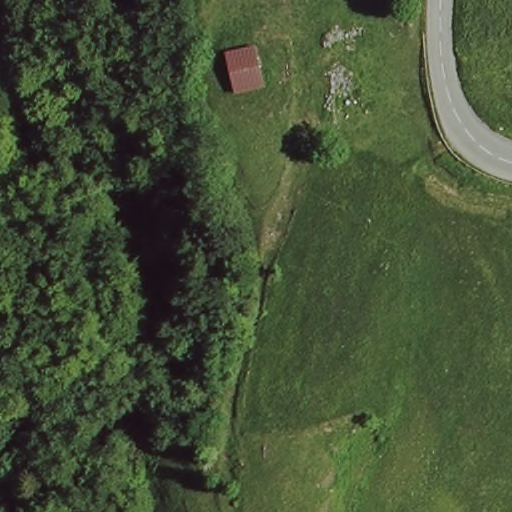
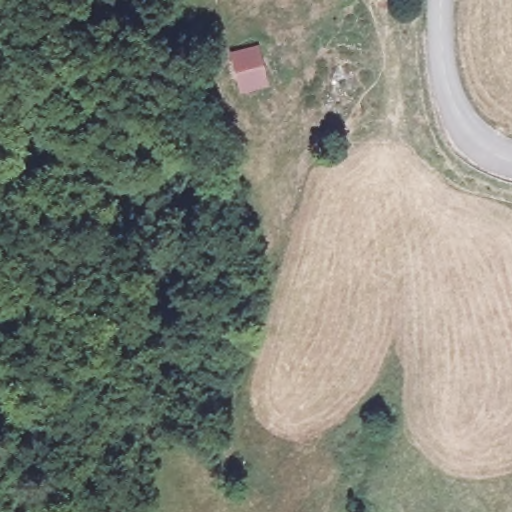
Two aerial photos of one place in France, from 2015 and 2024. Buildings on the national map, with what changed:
unchanged [(225,47),(258,40),(271,91),(239,94),(225,47)]

